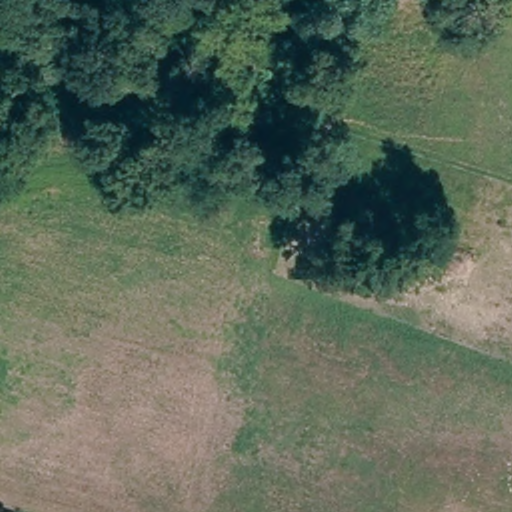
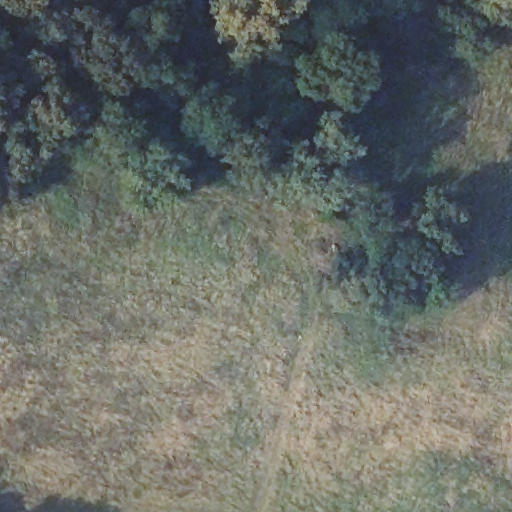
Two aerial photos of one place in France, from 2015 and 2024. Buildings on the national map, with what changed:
[]

